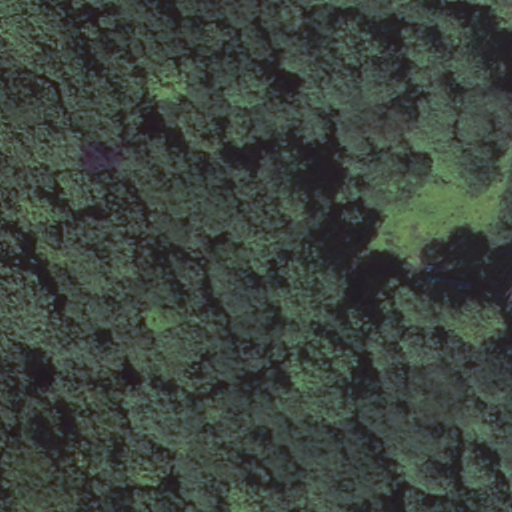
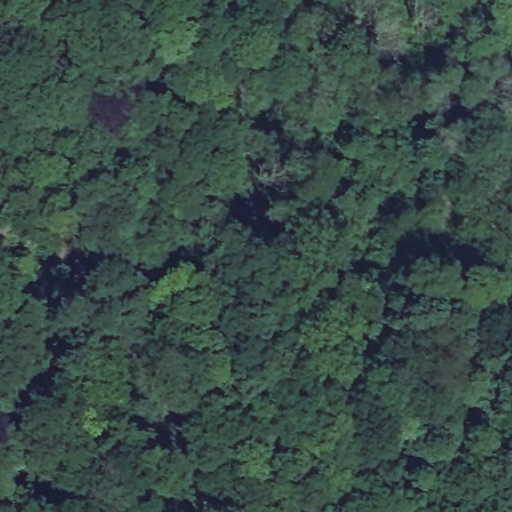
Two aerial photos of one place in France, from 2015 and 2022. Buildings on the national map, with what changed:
unchanged [(331,254),(322,253),(303,250),(305,236),(287,234),(290,215),(307,218),(326,220),(335,222),(331,254)]

